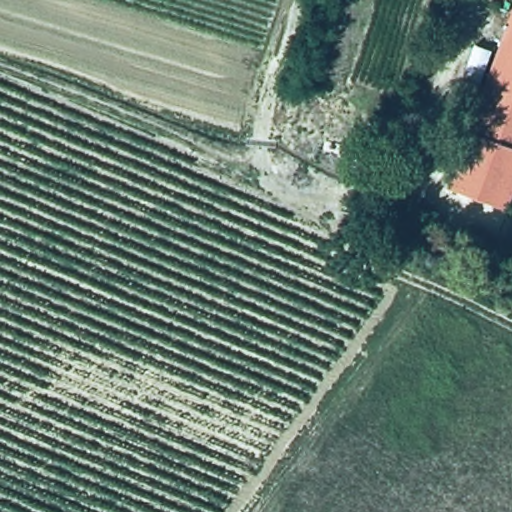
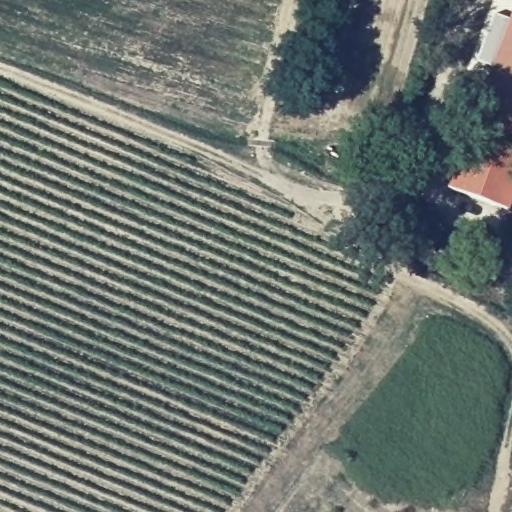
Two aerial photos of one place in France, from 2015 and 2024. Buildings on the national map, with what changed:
unchanged [(441,193),(509,1),(512,3),(512,196),(506,215),(441,193)]

